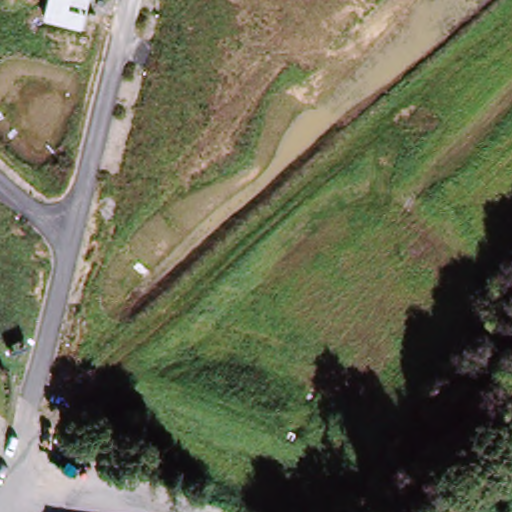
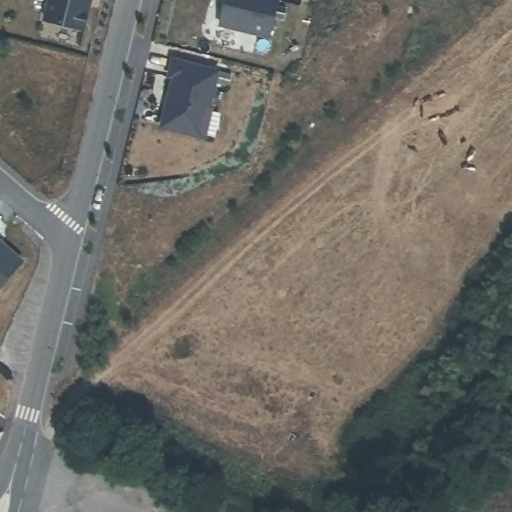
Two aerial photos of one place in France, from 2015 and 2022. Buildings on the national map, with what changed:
new [(92,0),(83,31),(42,21),(48,0),(92,0)]
new [(277,0),(268,37),(218,24),(225,0),(277,0)]
new [(172,77),(167,76),(172,59),(217,70),(208,107),(211,107),(204,137),(160,126),(172,77)]
new [(25,261),(0,291),(0,238),(25,261)]

